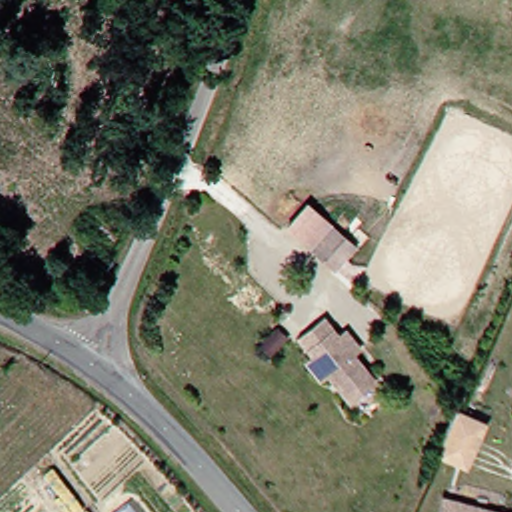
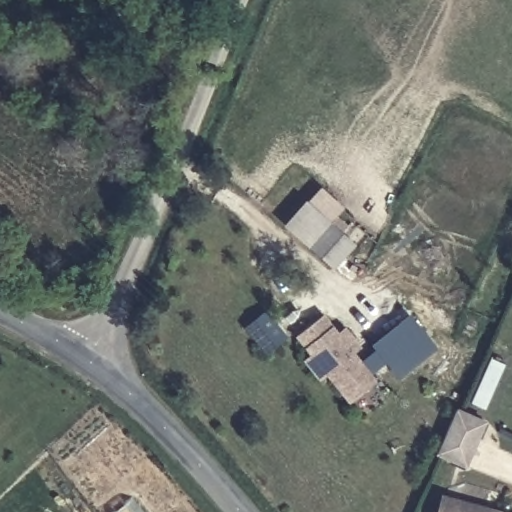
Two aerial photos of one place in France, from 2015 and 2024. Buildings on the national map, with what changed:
unchanged [(307,201),(356,242),(331,270),(284,226),(307,201)]
unchanged [(383,375),(354,399),(331,372),(323,378),(307,357),(315,351),(309,343),(300,333),(326,312),(336,322),(342,328),(348,324),(366,345),(362,348),(383,375)]
new [(399,378),(386,363),(378,368),(368,356),(375,350),(371,345),(410,313),(437,348),(399,378)]
unchanged [(487,422),(466,471),(437,459),(458,409),(487,422)]
unchanged [(142,512),(113,512),(132,498),(142,512)]
unchanged [(498,512),(440,512),(443,501),(498,512)]

